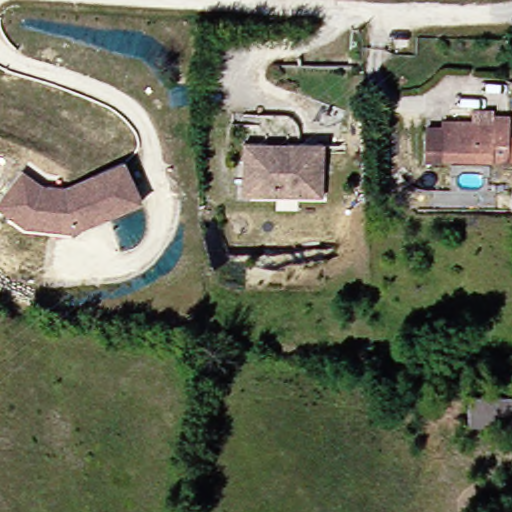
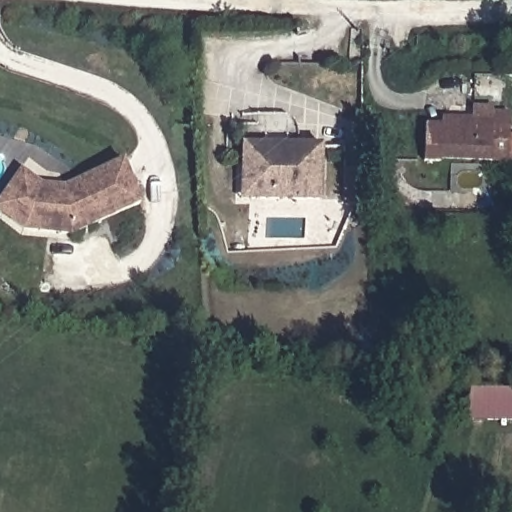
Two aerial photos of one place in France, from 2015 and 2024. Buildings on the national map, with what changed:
unchanged [(511,163),(441,159),(441,164),(421,164),(422,126),(443,128),(443,120),(495,122),(495,115),(512,116),(512,132),(511,163)]
unchanged [(320,194),(250,193),(241,193),(242,139),(285,139),(321,140),(320,194)]
unchanged [(37,187),(44,190),(60,192),(119,165),(137,207),(67,238),(20,232),(0,217),(0,197),(7,187),(17,173),(37,187)]
new [(467,423),(468,394),(512,394),(512,422),(467,423)]

